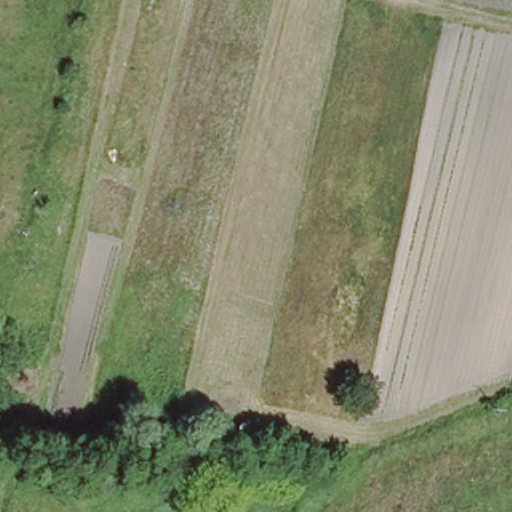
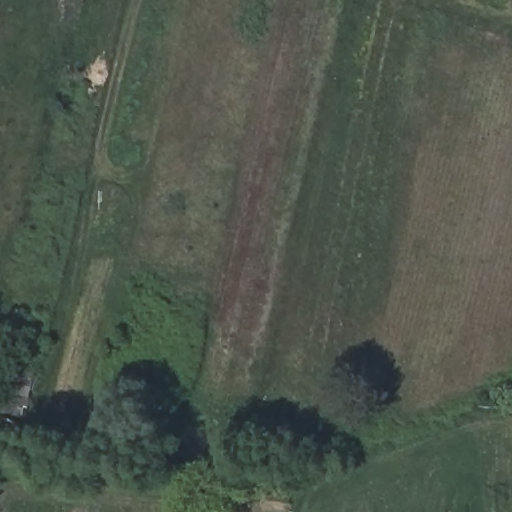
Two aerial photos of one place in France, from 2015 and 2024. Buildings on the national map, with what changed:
[]

